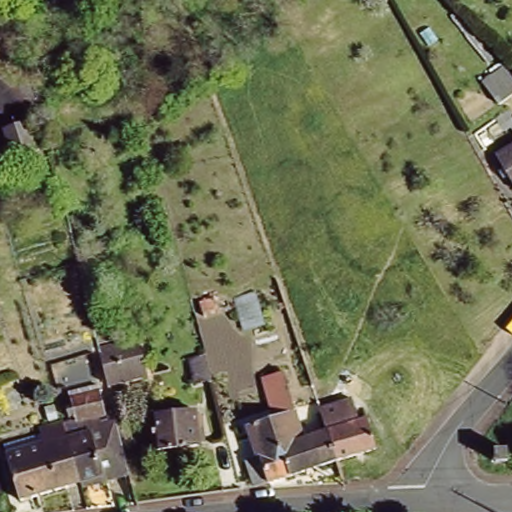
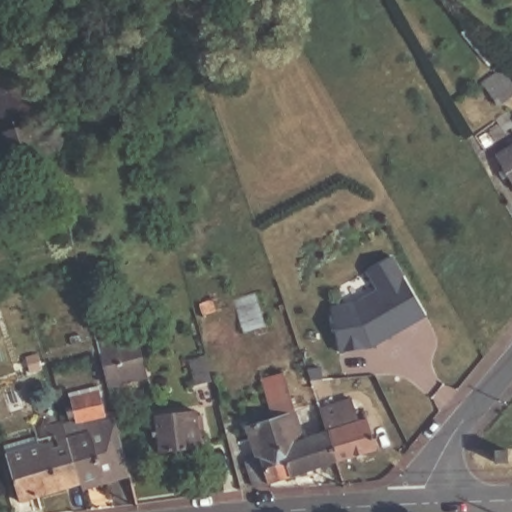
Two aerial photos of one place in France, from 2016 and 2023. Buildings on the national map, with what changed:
unchanged [(36,152),(13,161),(2,133),(25,125),(36,152)]
unchanged [(499,154),(512,147),(512,178),(499,154)]
new [(356,302),(379,289),(367,270),(392,255),(426,315),(372,346),(340,352),(331,307),(356,302)]
unchanged [(271,330),(260,333),(257,326),(247,329),(237,300),(259,292),(271,330)]
unchanged [(219,311),(207,315),(203,303),(215,299),(219,311)]
unchanged [(148,370),(107,378),(103,359),(100,346),(142,337),(144,350),(148,370)]
unchanged [(217,383),(203,386),(197,360),(211,357),(217,383)]
unchanged [(339,462),(270,483),(261,455),(258,457),(249,428),(277,420),(264,380),(285,373),(306,437),(325,431),(319,411),(322,410),(339,462)]
unchanged [(104,395),(109,419),(80,425),(75,401),(104,395)]
unchanged [(335,399),(337,405),(354,399),(361,420),(368,418),(378,450),(339,462),(322,410),(320,403),(335,399)]
unchanged [(56,410),(60,425),(50,427),(46,413),(56,410)]
unchanged [(152,415),(199,411),(202,447),(157,451),(152,415)]
unchanged [(131,476),(107,484),(106,480),(82,487),(69,445),(92,437),(91,431),(119,422),(131,476)]
unchanged [(82,487),(22,506),(6,460),(2,451),(40,440),(39,436),(64,428),(69,445),(82,487)]
unchanged [(260,458),(269,483),(256,487),(247,462),(259,458),(260,458)]

